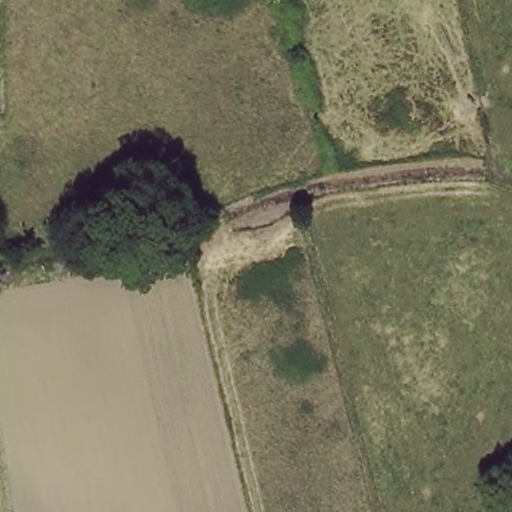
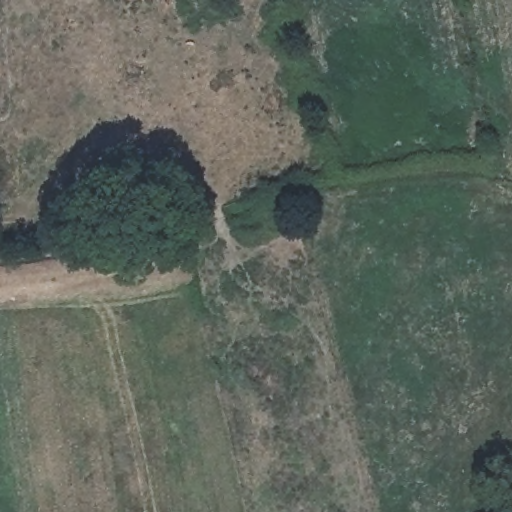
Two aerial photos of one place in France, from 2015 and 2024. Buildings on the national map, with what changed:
[]

